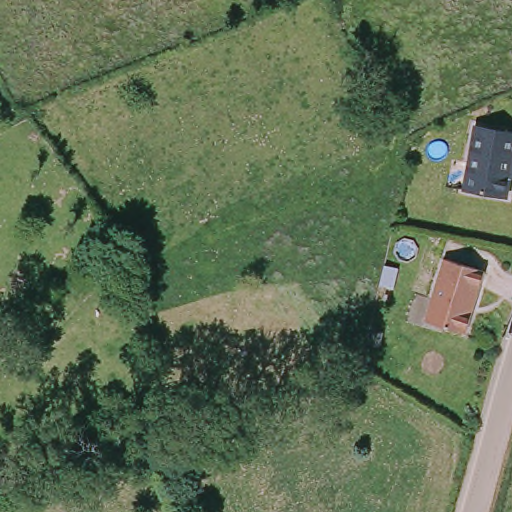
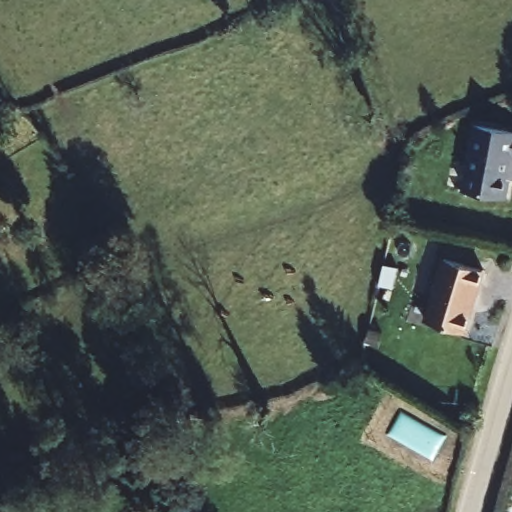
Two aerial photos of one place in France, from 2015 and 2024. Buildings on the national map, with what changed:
unchanged [(504,190),(464,184),(474,122),(512,127),(512,145),(511,145),(504,190)]
unchanged [(482,265),(464,322),(428,311),(447,254),(482,265)]

